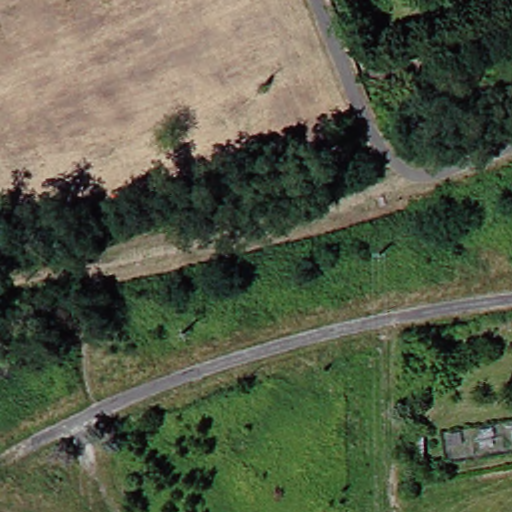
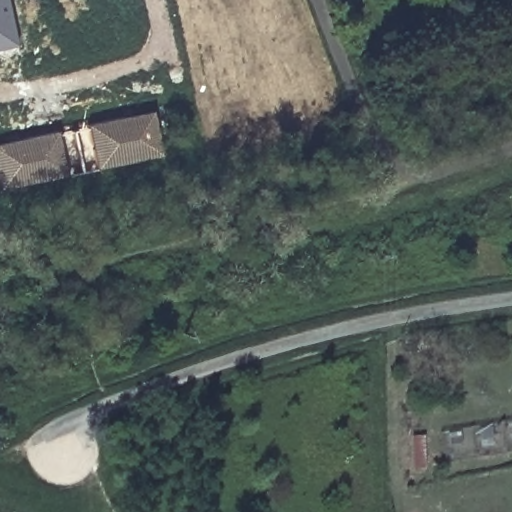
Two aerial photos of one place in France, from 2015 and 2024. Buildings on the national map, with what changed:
new [(0,49),(0,0),(6,0),(16,46),(0,49)]
new [(57,135),(87,129),(86,126),(152,111),(160,155),(0,189),(0,143),(56,131),(57,135)]

